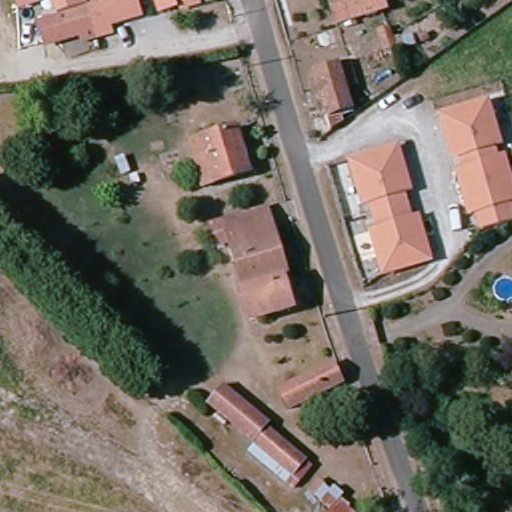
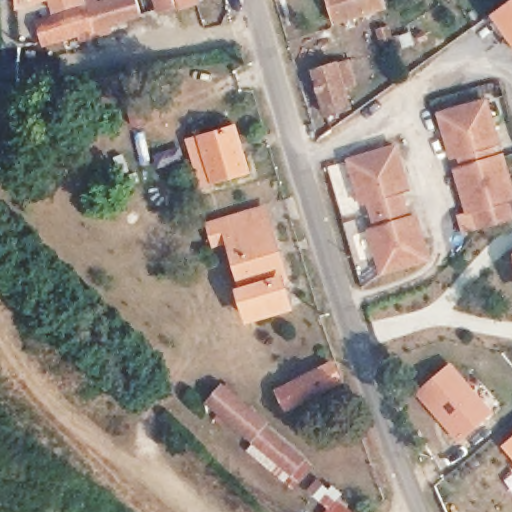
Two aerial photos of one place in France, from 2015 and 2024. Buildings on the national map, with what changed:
unchanged [(12,7),(12,0),(37,0),(12,7)]
unchanged [(83,2),(82,2),(82,3),(83,3),(83,5),(75,7),(51,14),(47,0),(82,0),(83,2)]
unchanged [(83,2),(91,0),(93,7),(109,2),(116,0),(134,0),(138,15),(114,22),(103,25),(106,35),(93,38),(83,5),(83,3),(82,3),(82,2),(83,2)]
unchanged [(172,5),(154,11),(151,0),(171,0),(172,5)]
unchanged [(194,2),(173,8),(172,5),(171,0),(194,0),(194,2)]
unchanged [(382,11),(334,24),(325,0),(379,0),(382,11)]
new [(494,15),(512,2),(512,39),(494,15)]
unchanged [(83,5),(93,38),(76,43),(74,32),(42,42),(36,23),(76,11),(75,7),(83,5)]
unchanged [(314,112),(305,78),(350,65),(357,90),(340,96),(345,114),(333,117),(336,126),(309,145),(299,117),(314,112)]
unchanged [(478,212),(471,214),(458,172),(465,170),(461,156),(454,159),(442,117),(487,102),(500,145),(493,147),(497,160),(504,158),(512,185),(512,202),(510,202),(512,211),(512,223),(484,231),(478,212)]
unchanged [(245,177),(198,190),(185,147),(232,133),(245,177)]
unchanged [(402,152),(414,193),(407,196),(416,223),(423,221),(436,262),(391,277),(378,235),(385,233),(376,205),(369,207),(356,166),(402,152)]
unchanged [(244,325),(240,311),(236,295),(240,294),(219,227),(262,214),(283,283),(279,284),(284,298),(288,312),(244,325)]
new [(494,411),(459,442),(417,392),(452,362),(494,411)]
unchanged [(337,392),(285,417),(275,398),(327,373),(337,392)]
unchanged [(258,427),(255,430),(295,464),(282,478),(199,409),(215,391),(258,427)]
new [(501,446),(512,436),(512,459),(501,446)]
unchanged [(323,512),(329,505),(337,512),(323,512)]

